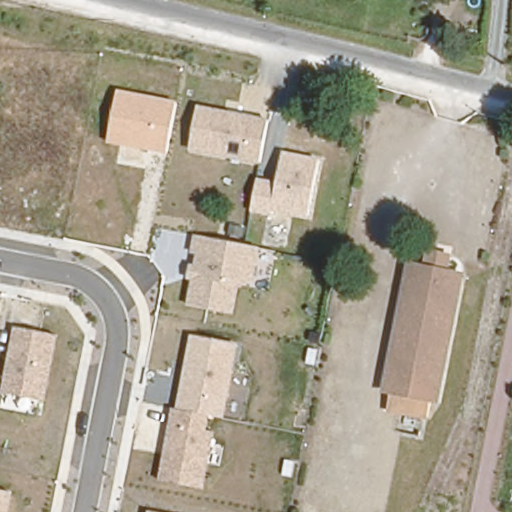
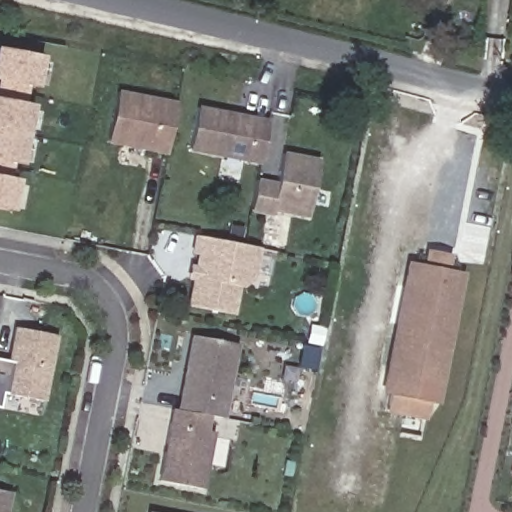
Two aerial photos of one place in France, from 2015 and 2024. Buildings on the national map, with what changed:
new [(0,208),(0,48),(41,56),(11,211),(0,208)]
unchanged [(166,155),(109,143),(117,90),(177,101),(166,155)]
unchanged [(262,165),(190,151),(198,106),(268,119),(262,165)]
unchanged [(277,180),(282,152),(320,159),(307,218),(272,212),(271,216),(251,212),(257,178),(277,180)]
unchanged [(256,278),(240,290),(235,316),(188,306),(192,280),(186,278),(195,234),(261,248),(256,278)]
unchanged [(437,408),(431,407),(427,425),(387,416),(392,398),(384,396),(412,269),(428,273),(431,258),(452,263),(449,277),(465,281),(437,408)]
unchanged [(45,404),(1,395),(14,328),(57,335),(45,404)]
unchanged [(226,420),(210,417),(208,433),(215,435),(204,489),(157,482),(171,408),(177,409),(191,334),(240,343),(226,420)]
unchanged [(0,512),(0,490),(12,492),(9,512),(0,512)]

